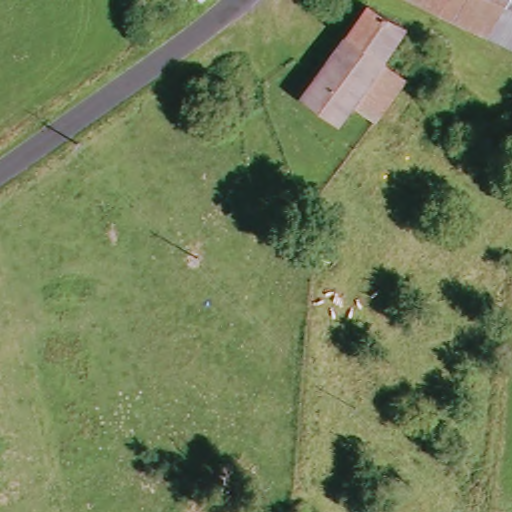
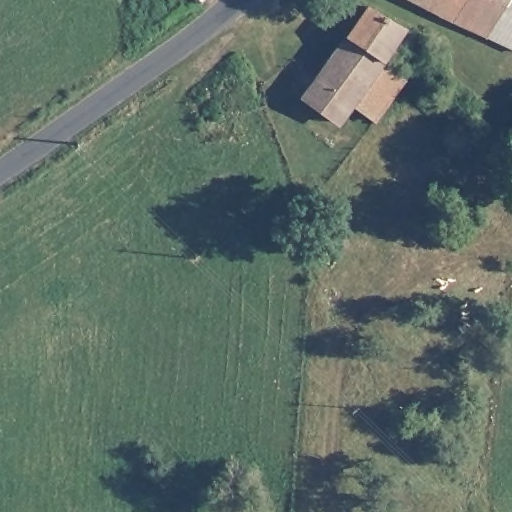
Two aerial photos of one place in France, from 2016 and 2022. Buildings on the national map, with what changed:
unchanged [(192,0),(193,2),(184,5),(183,0),(192,0)]
unchanged [(512,0),(512,44),(422,0),(512,0)]
unchanged [(325,77),(374,8),(409,32),(385,65),(357,105),(345,124),(310,100),(325,77)]
unchanged [(357,105),(385,65),(405,82),(378,120),(357,105)]

